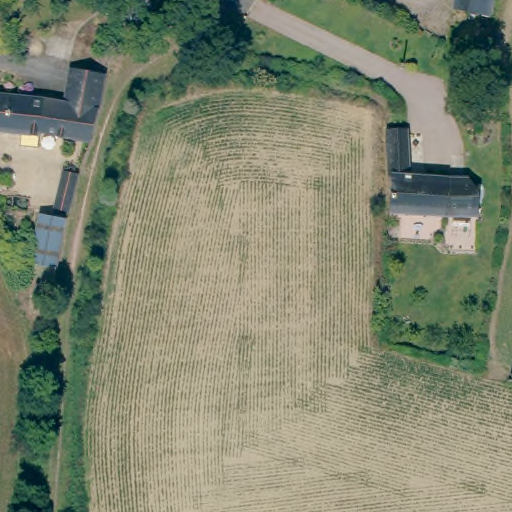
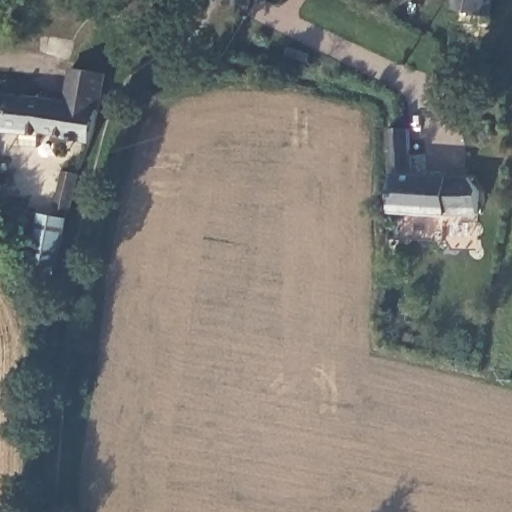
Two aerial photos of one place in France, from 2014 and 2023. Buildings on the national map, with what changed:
unchanged [(455,23),(457,11),(459,0),(493,0),(491,16),(483,16),(482,28),(455,23)]
unchanged [(67,102),(74,71),(86,72),(106,76),(92,142),(45,132),(40,149),(22,144),(23,133),(0,127),(0,89),(67,102)]
unchanged [(478,216),(390,211),(387,129),(408,127),(413,171),(478,176),(478,216)]
unchanged [(70,203),(59,201),(65,166),(78,170),(70,203)]
unchanged [(55,274),(36,268),(39,257),(32,256),(42,208),(67,213),(55,274)]

